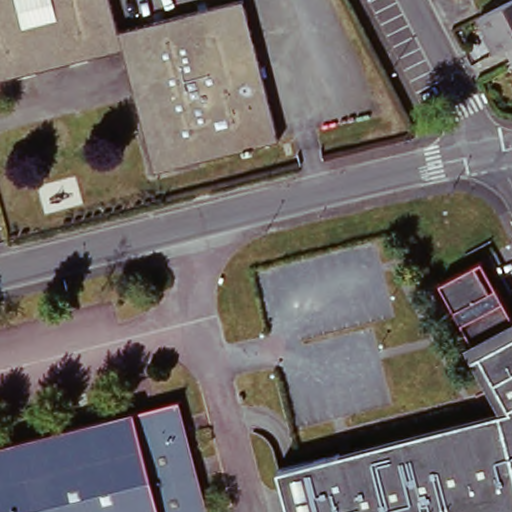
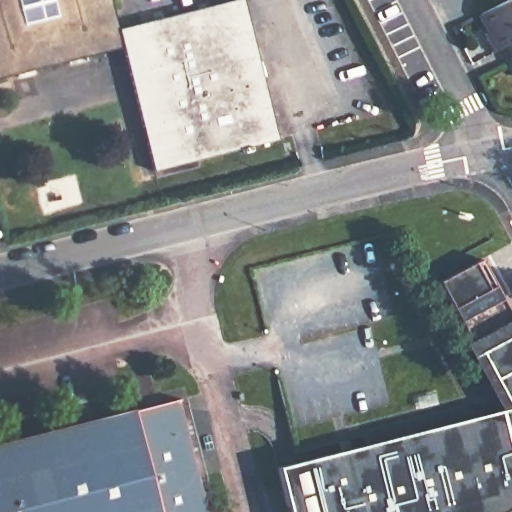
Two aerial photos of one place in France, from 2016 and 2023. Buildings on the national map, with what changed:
unchanged [(242,0),(279,141),(156,173),(124,49),(0,80),(0,0),(111,0),(120,30),(242,0)]
unchanged [(485,36),(490,34),(480,16),(511,0),(512,0),(512,44),(506,48),(494,54),(485,36)]
unchanged [(512,44),(512,59),(506,48),(512,44)]
unchanged [(274,471),(501,414),(475,363),(469,366),(461,352),(467,349),(433,283),(470,263),(477,259),(491,286),(512,325),(512,512),(285,512),(274,471)]
unchanged [(179,397),(209,512),(0,512),(0,443),(179,397)]

